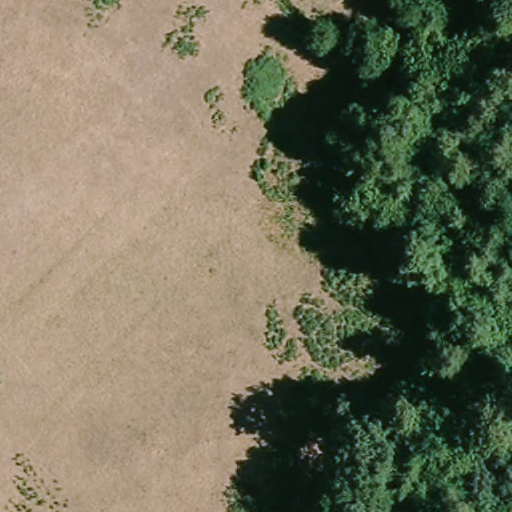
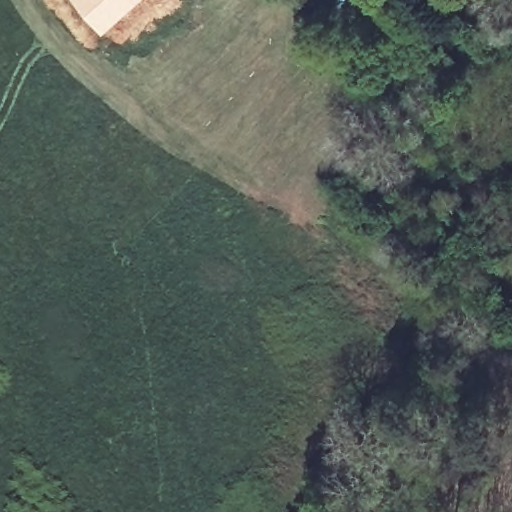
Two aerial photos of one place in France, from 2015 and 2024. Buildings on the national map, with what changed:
new [(103,30),(77,0),(138,0),(103,30)]

